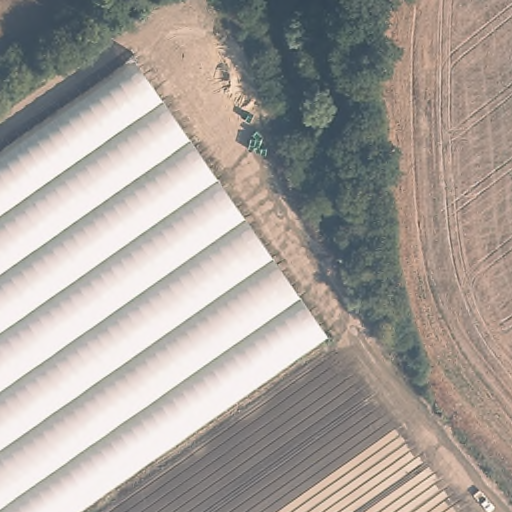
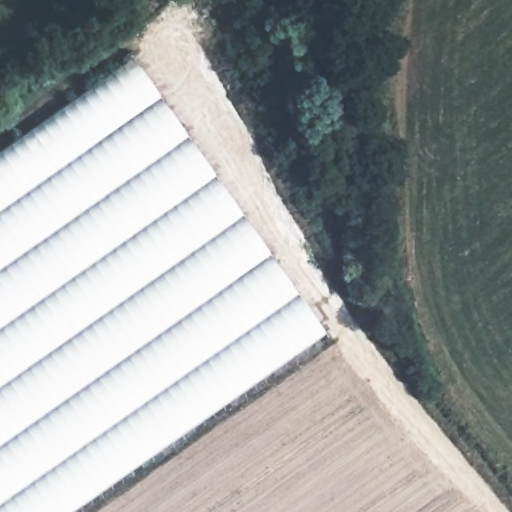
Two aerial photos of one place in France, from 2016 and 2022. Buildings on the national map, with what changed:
unchanged [(74,512),(0,512),(0,153),(131,60),(326,335),(74,512)]

